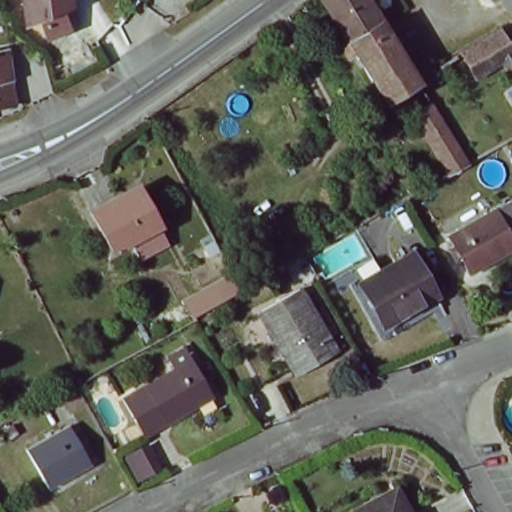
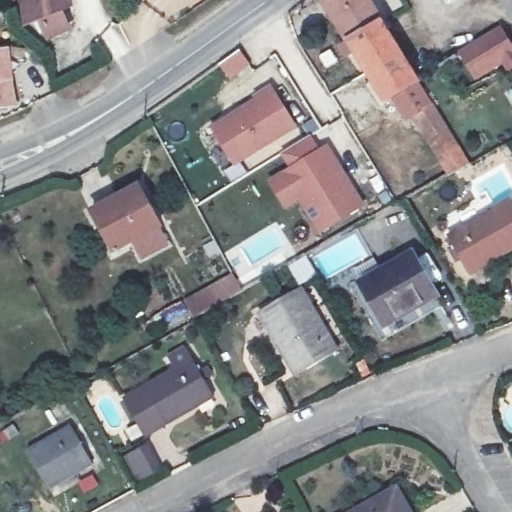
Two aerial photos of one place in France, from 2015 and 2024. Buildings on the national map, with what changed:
unchanged [(74,0),(75,7),(65,10),(74,27),(55,35),(46,19),(38,21),(30,24),(27,0),(74,0)]
unchanged [(370,0),(383,20),(352,38),(328,0),(370,0)]
unchanged [(512,0),(512,6),(508,0),(512,0)]
unchanged [(421,80),(415,84),(390,99),(361,54),(350,60),(343,44),(348,40),(352,38),(383,20),(421,80)]
unchanged [(477,41),(501,27),(512,45),(512,71),(509,73),(503,64),(493,70),(479,77),(463,50),(477,41)]
unchanged [(5,52),(10,77),(0,79),(0,53),(5,52)]
unchanged [(15,102),(0,105),(0,79),(10,77),(15,102)]
new [(273,85),(300,127),(237,167),(211,127),(273,85)]
unchanged [(425,134),(411,111),(430,100),(470,157),(449,169),(425,134)]
new [(290,168),(282,155),(313,136),(320,149),(327,145),(367,206),(321,235),(300,201),(287,210),(268,180),(290,168)]
unchanged [(141,186),(162,225),(115,250),(95,212),(141,186)]
unchanged [(476,271),(457,237),(512,206),(512,251),(476,271)]
unchanged [(210,269),(225,260),(240,289),(225,297),(210,269)]
unchanged [(413,260),(433,297),(386,323),(365,287),(413,260)]
unchanged [(309,289),(341,349),(302,371),(269,312),(309,289)]
unchanged [(183,374),(176,361),(193,351),(201,364),(220,400),(152,439),(131,403),(183,374)]
unchanged [(73,429),(93,465),(52,488),(33,452),(73,429)]
unchanged [(399,490),(412,512),(361,512),(399,490)]

